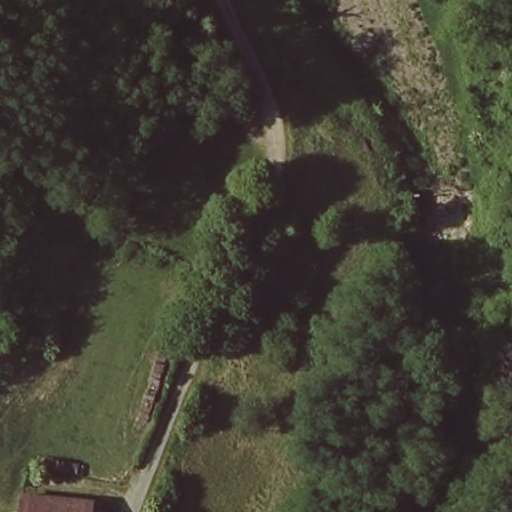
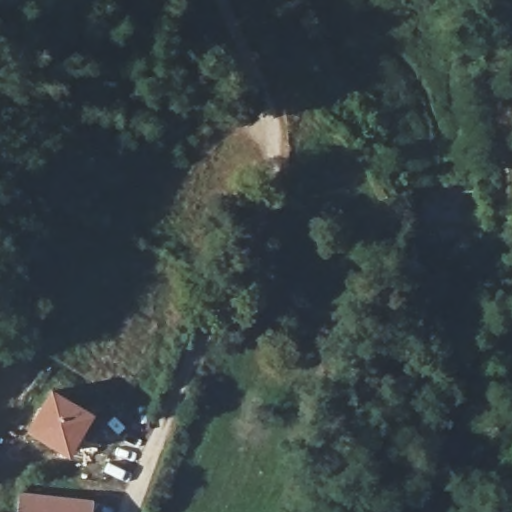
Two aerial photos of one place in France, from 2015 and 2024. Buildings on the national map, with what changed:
unchanged [(204,170),(228,185),(201,222),(182,241),(162,225),(204,170)]
new [(51,386),(93,411),(68,454),(26,430),(51,386)]
unchanged [(92,502),(91,512),(22,512),(23,495),(92,502)]

